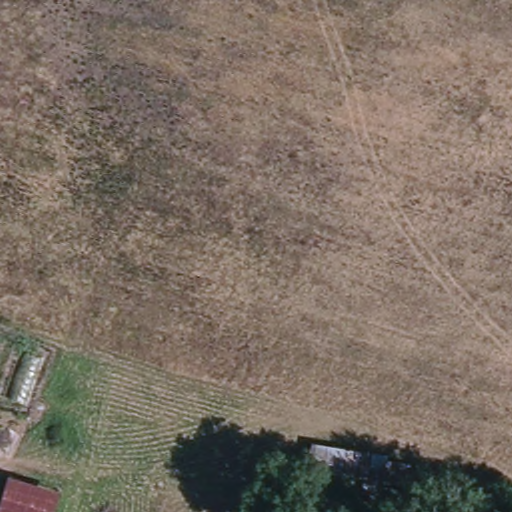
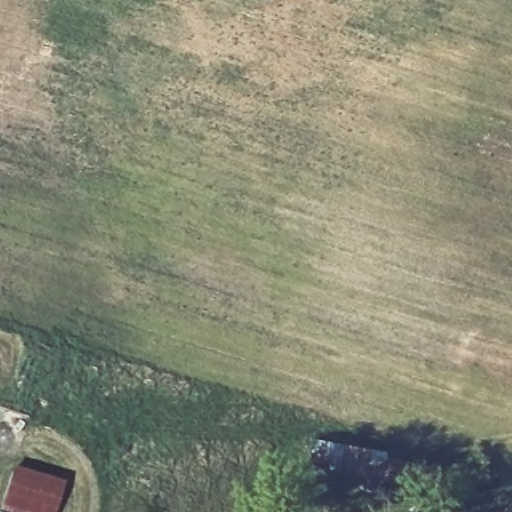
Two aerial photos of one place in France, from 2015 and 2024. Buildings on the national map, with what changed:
unchanged [(393,449),(392,455),(427,463),(418,497),(317,483),(321,438),(393,449)]
unchanged [(64,490),(57,512),(0,512),(0,505),(11,472),(64,490)]

